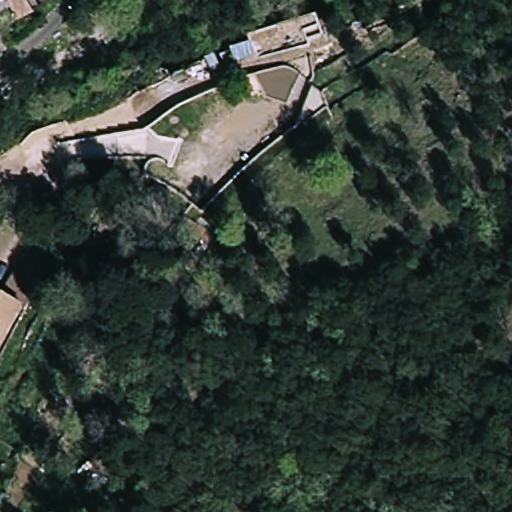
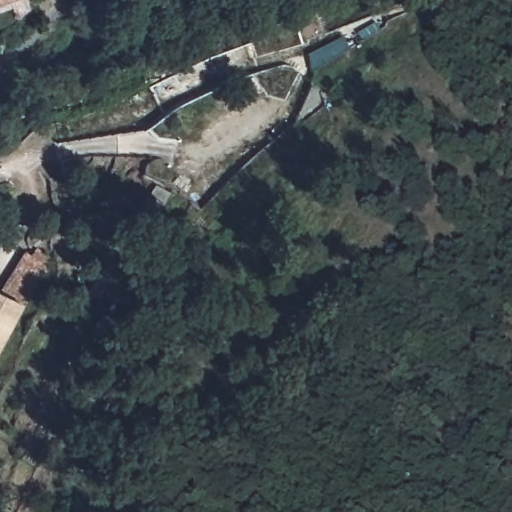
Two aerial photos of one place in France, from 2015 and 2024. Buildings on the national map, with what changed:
unchanged [(38,5),(0,21),(0,0),(36,0),(38,5)]
unchanged [(56,269),(30,308),(25,305),(16,299),(7,293),(33,253),(56,269)]
unchanged [(16,299),(25,305),(0,341),(0,288),(7,293),(16,299)]

